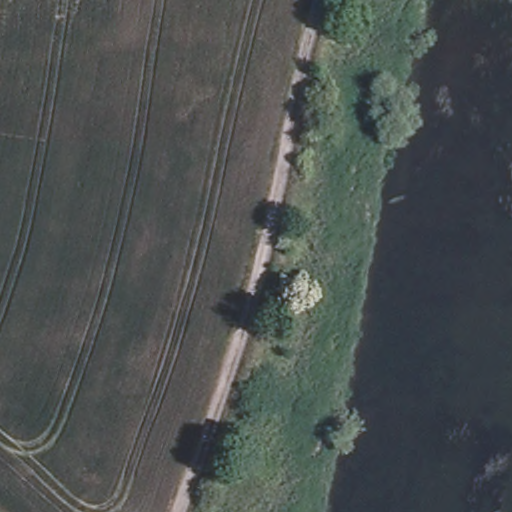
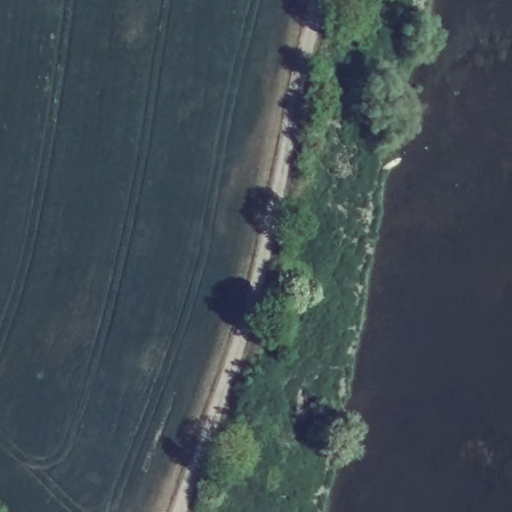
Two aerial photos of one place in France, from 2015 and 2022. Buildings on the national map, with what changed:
[]

